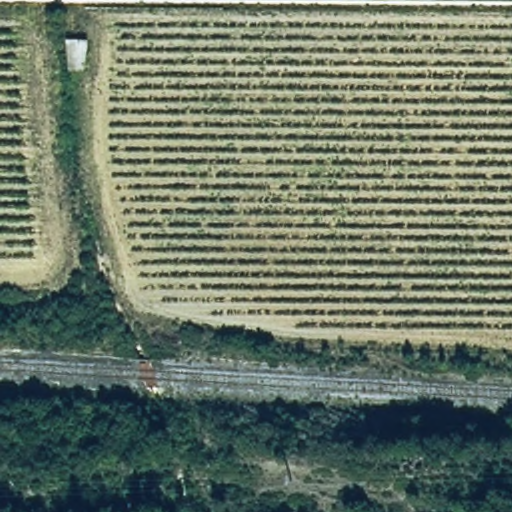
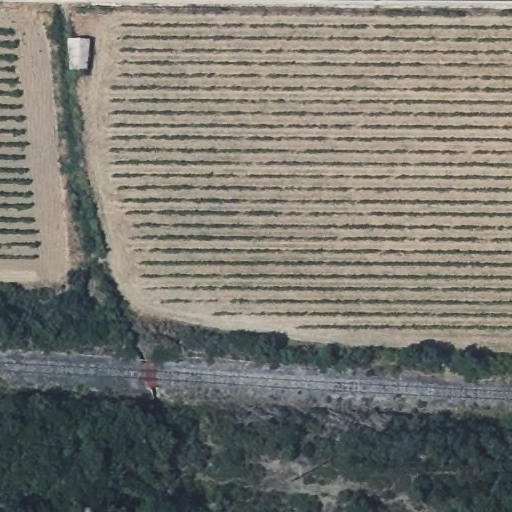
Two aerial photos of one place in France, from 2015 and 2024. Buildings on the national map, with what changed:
unchanged [(85,70),(67,70),(66,36),(90,38),(85,70)]

